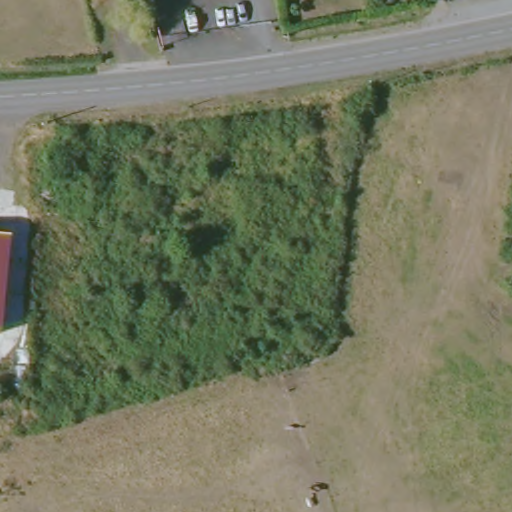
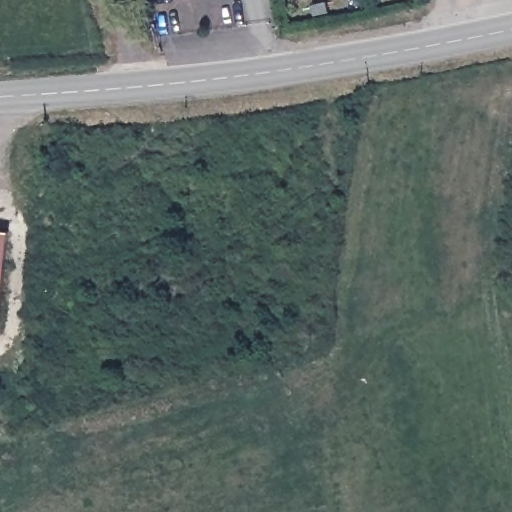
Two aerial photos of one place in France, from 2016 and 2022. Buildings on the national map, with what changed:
unchanged [(0,230),(10,231),(1,331),(0,331),(0,230)]

